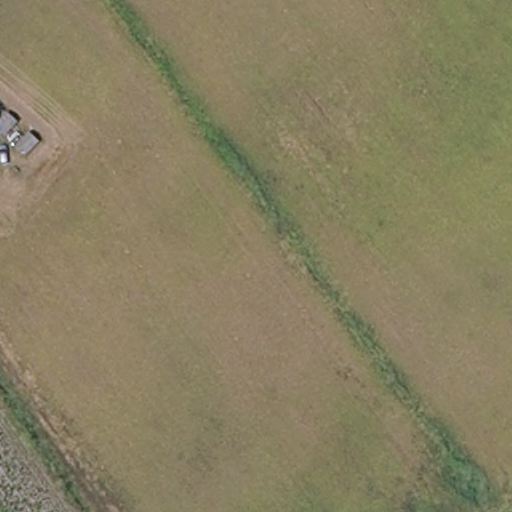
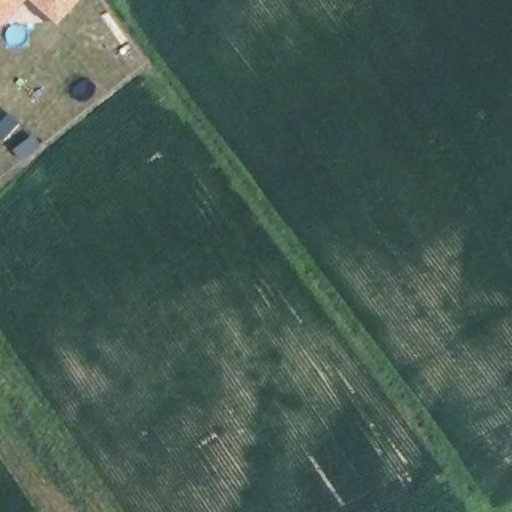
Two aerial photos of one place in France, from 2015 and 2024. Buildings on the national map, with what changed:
new [(28,0),(0,31),(0,0),(28,0)]
new [(30,0),(82,0),(58,26),(30,0)]

